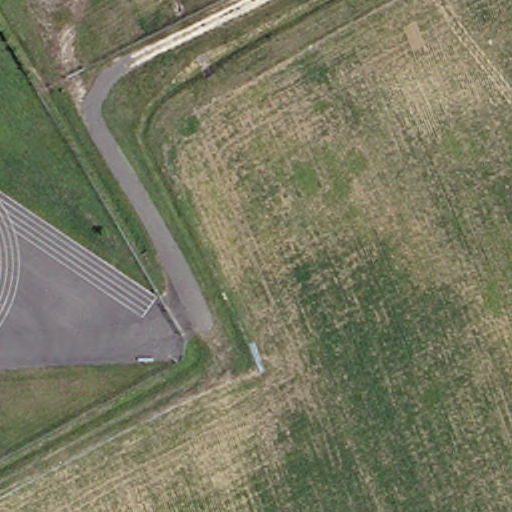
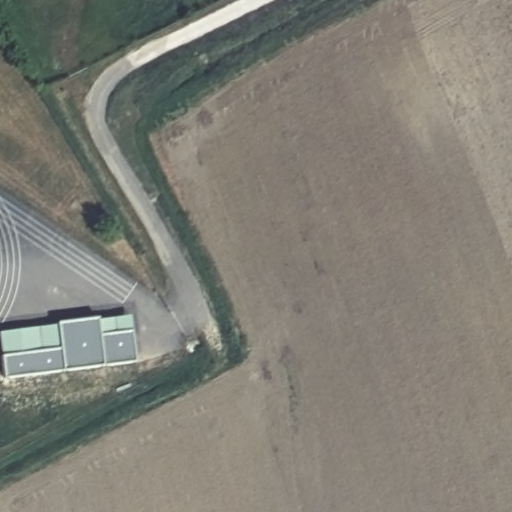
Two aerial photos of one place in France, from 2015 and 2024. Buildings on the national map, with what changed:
new [(131,317),(136,362),(5,377),(0,336),(0,332),(131,317)]

